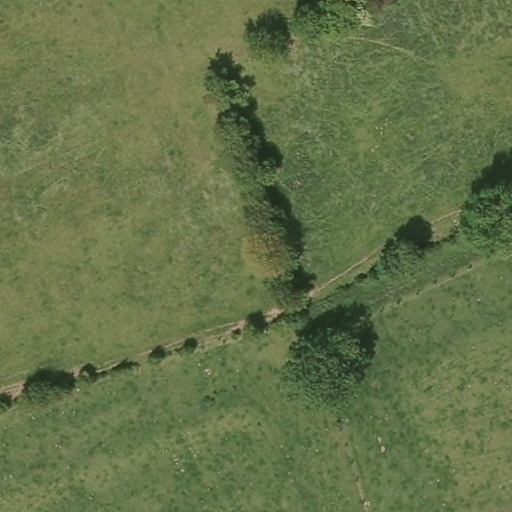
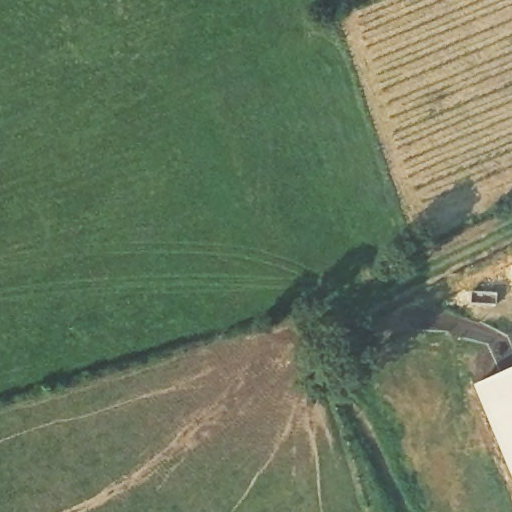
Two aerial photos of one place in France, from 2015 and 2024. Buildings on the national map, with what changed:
new [(468,390),(512,372),(512,495),(468,390)]

